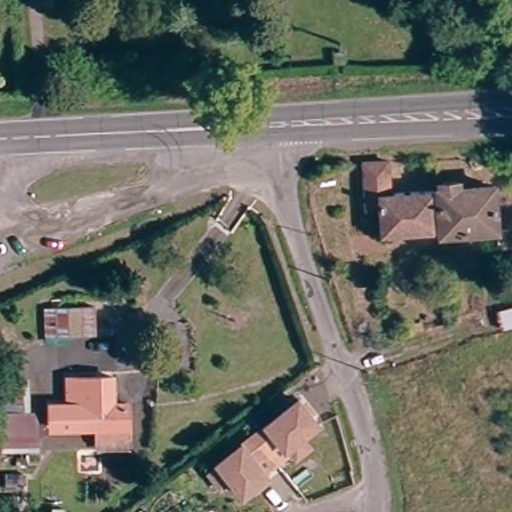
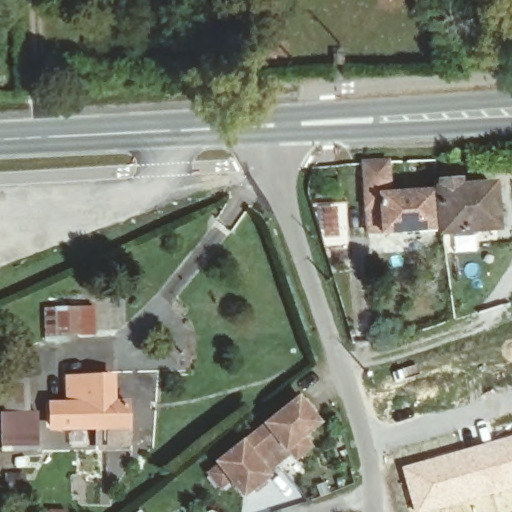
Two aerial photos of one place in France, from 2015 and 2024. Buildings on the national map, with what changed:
unchanged [(394,163),(397,197),(435,195),(437,233),(385,234),(384,211),(372,210),(371,164),(394,163)]
unchanged [(464,184),(465,188),(500,188),(501,227),(443,231),(442,185),(464,184)]
unchanged [(84,308),(85,335),(45,338),(43,310),(84,308)]
unchanged [(104,377),(106,407),(115,406),(119,445),(91,446),(92,432),(53,433),(50,410),(62,409),(62,379),(104,377)]
unchanged [(209,474),(219,466),(218,464),(298,400),(317,424),(301,437),(310,449),(297,460),(288,448),(285,450),(278,441),(254,460),(268,477),(244,496),(230,480),(220,488),(209,474)]
new [(40,450),(0,449),(0,430),(0,411),(39,411),(40,450)]
new [(427,512),(413,512),(401,468),(512,436),(512,489),(427,512)]

